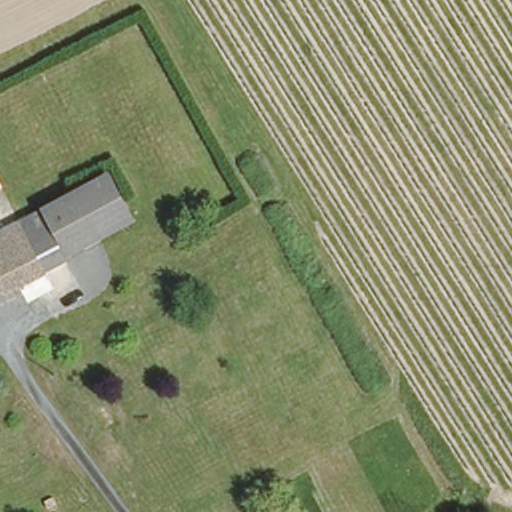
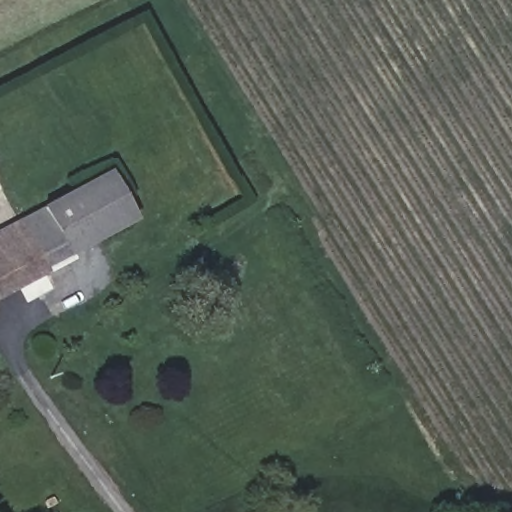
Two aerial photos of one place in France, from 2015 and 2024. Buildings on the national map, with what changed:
unchanged [(83,202),(119,184),(141,231),(107,248),(83,202)]
unchanged [(79,263),(81,267),(56,280),(29,229),(83,202),(107,248),(79,263)]
unchanged [(0,243),(29,229),(56,280),(0,307),(0,243)]

